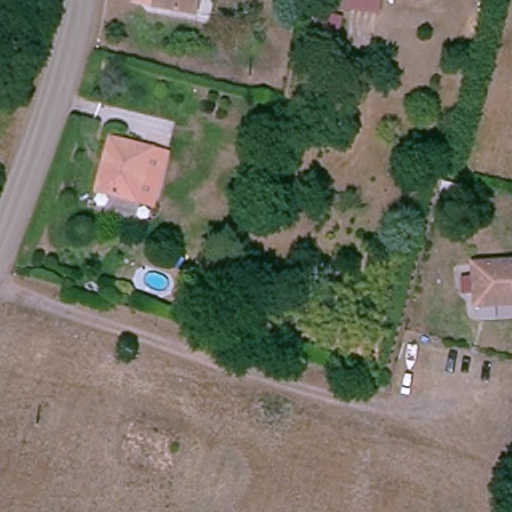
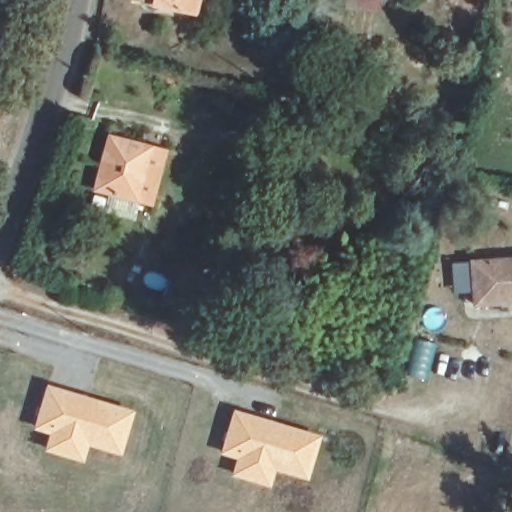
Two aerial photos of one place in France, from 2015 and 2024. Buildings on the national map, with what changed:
unchanged [(154,3),(154,0),(196,0),(195,5),(154,3)]
unchanged [(139,197),(96,190),(107,137),(148,145),(168,149),(165,170),(160,201),(139,197)]
unchanged [(475,307),(470,262),(512,257),(512,302),(475,307)]
new [(46,383),(135,410),(121,455),(89,446),(84,462),(43,450),(47,434),(32,429),(46,383)]
new [(232,408),(322,435),(308,480),(275,470),(270,487),(230,475),(235,459),(219,453),(232,408)]

